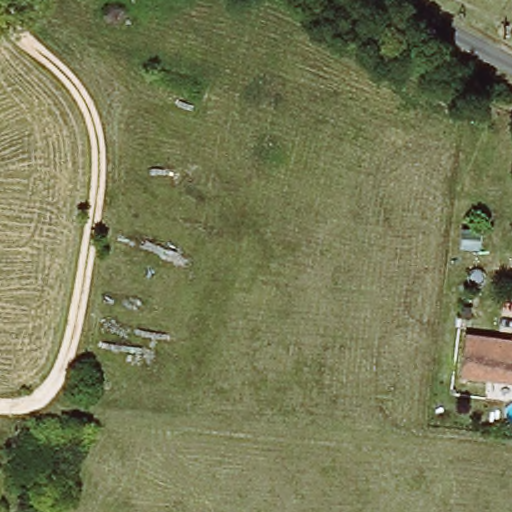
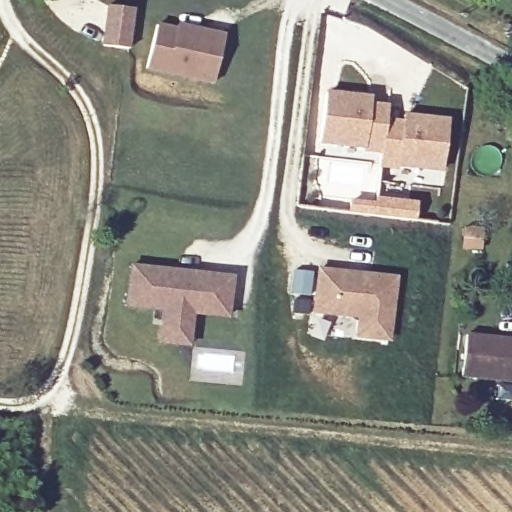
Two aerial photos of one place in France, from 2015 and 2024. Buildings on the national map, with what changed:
new [(109,6),(135,9),(130,49),(104,46),(109,6)]
new [(176,31),(177,26),(190,29),(224,37),(213,83),(147,68),(156,26),(176,31)]
new [(403,116),(447,122),(441,171),(397,165),(397,164),(379,163),(381,149),(320,142),(326,94),(370,99),(370,104),(386,106),(386,113),(385,121),(402,123),(403,116)]
new [(165,311),(127,306),(132,267),(231,278),(227,318),(192,314),(190,329),(189,346),(161,343),(163,326),(165,311)]
new [(359,273),(373,274),(398,277),(391,339),(360,336),(362,316),(317,311),(323,269),(359,273)]
unchanged [(464,333),(512,338),(512,381),(460,376),(464,333)]

